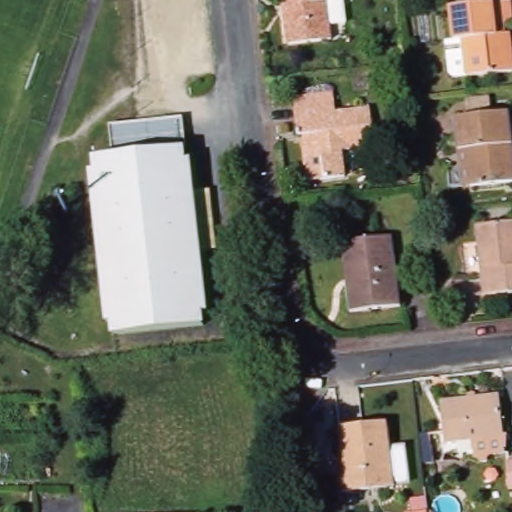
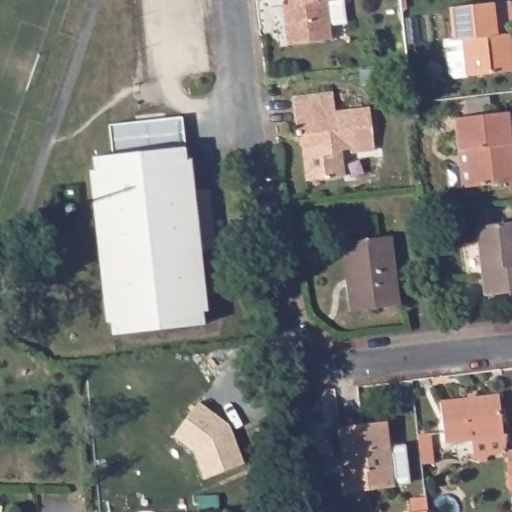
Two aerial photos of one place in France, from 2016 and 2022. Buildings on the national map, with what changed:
unchanged [(289,0),(336,0),(339,0),(342,0),(344,22),(329,24),(331,40),(287,45),(283,13),(290,12),(289,6),(289,0)]
unchanged [(512,24),(511,24),(512,28),(512,72),(457,79),(452,75),(448,42),(457,41),(453,10),(512,3),(512,24)]
unchanged [(303,135),(298,97),(338,93),(340,112),(375,108),(380,150),(356,153),(355,149),(346,150),(349,176),(312,180),(308,145),(307,134),(303,135)]
unchanged [(455,119),(508,112),(512,145),(512,183),(463,188),(455,119)]
unchanged [(89,177),(95,176),(94,163),(113,161),(109,131),(182,122),(185,152),(183,153),(185,166),(191,165),(194,196),(210,194),(217,253),(201,255),(207,316),(203,317),(204,330),(111,340),(110,328),(105,328),(89,177)]
unchanged [(512,222),(512,293),(484,296),(476,227),(512,222)]
unchanged [(399,306),(350,312),(347,286),(342,243),(349,242),(391,237),(399,306)]
unchanged [(509,452),(493,454),(490,458),(484,459),(480,456),(475,457),(472,438),(445,442),(440,402),(499,394),(503,434),(506,434),(509,452)]
new [(198,402),(226,423),(243,463),(204,479),(193,450),(173,436),(198,402)]
unchanged [(345,473),(349,472),(344,430),(392,424),(395,448),(409,446),(414,483),(399,485),(399,487),(347,494),(345,473)]

